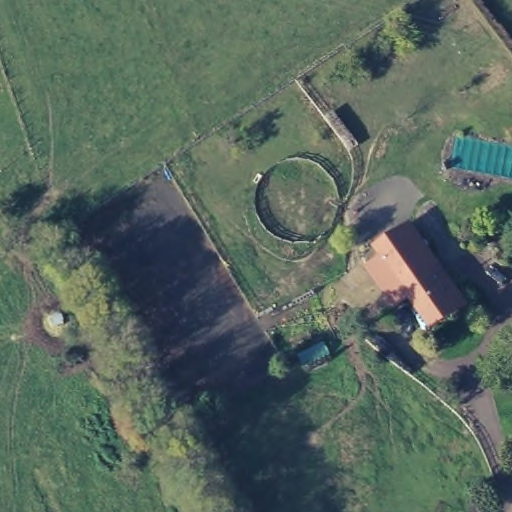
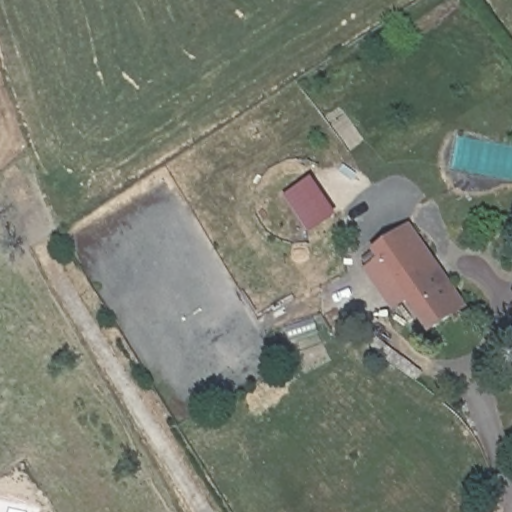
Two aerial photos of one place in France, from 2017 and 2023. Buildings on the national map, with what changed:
new [(285,195),(312,179),(337,216),(310,232),(285,195)]
unchanged [(384,261),(379,254),(415,229),(470,307),(434,331),(410,299),(397,309),(372,271),(384,261)]

